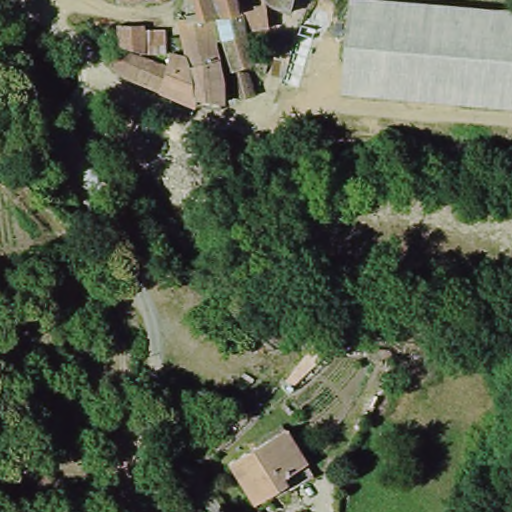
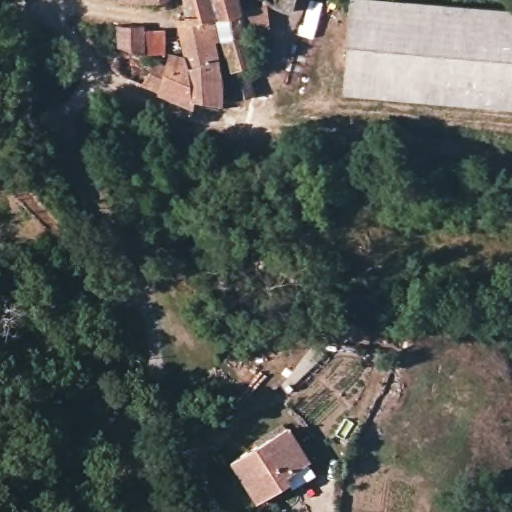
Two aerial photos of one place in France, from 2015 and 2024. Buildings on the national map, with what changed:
unchanged [(218,29),(208,7),(201,10),(211,42),(216,59),(219,80),(219,81),(219,87),(199,92),(200,97),(197,97),(158,84),(165,57),(183,62),(183,59),(173,52),(171,44),(177,42),(171,19),(168,12),(169,9),(178,7),(176,0),(262,0),(266,13),(239,22),(248,46),(229,57),(218,29)]
unchanged [(383,0),(512,10),(512,108),(344,93),(352,0),(383,0)]
unchanged [(138,17),(139,23),(134,42),(111,39),(108,20),(138,17)]
unchanged [(128,75),(110,61),(108,61),(112,43),(118,43),(133,49),(165,57),(158,84),(128,75)]
unchanged [(248,60),(256,80),(238,85),(237,82),(229,57),(248,60)]
unchanged [(323,471),(251,510),(221,463),(289,427),(323,471)]

